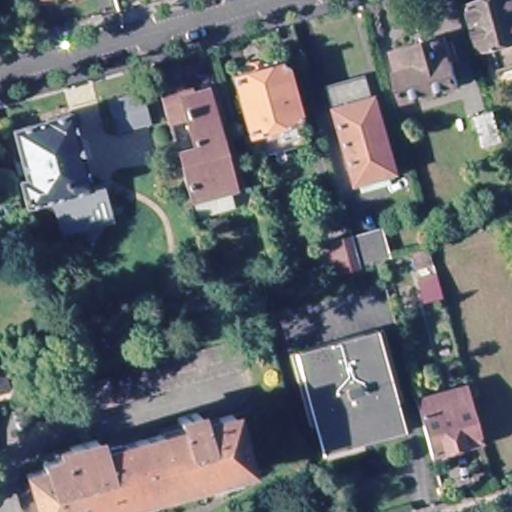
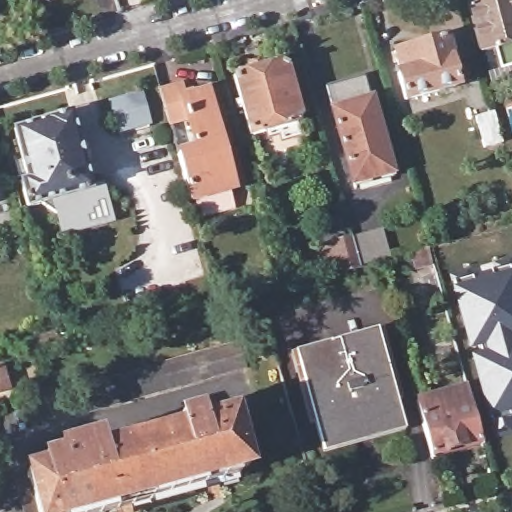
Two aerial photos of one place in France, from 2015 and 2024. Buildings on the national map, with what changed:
unchanged [(512,0),(512,68),(502,71),(496,47),(482,51),(470,7),(497,0),(512,0)]
unchanged [(397,76),(401,75),(395,52),(446,39),(458,86),(403,102),(397,76)]
unchanged [(296,124),(299,136),(268,144),(266,132),(251,136),(234,76),(248,72),(247,66),(262,61),(264,68),(282,63),(287,67),(302,118),(299,123),(296,124)]
unchanged [(363,76),(391,172),(352,183),(325,86),(363,76)]
unchanged [(178,150),(196,146),(187,114),(169,119),(160,86),(182,79),(187,92),(207,87),(234,183),(191,195),(181,159),(178,150)]
new [(142,90),(151,119),(122,127),(114,98),(142,90)]
unchanged [(21,181),(27,179),(13,131),(46,122),(45,119),(70,112),(91,190),(85,191),(87,200),(56,209),(52,200),(27,207),(21,181)]
unchanged [(502,142),(484,147),(475,117),(493,112),(502,142)]
unchanged [(320,254),(342,249),(370,241),(377,268),(368,270),(350,276),(328,282),(320,254)]
unchanged [(427,247),(432,262),(413,267),(409,252),(426,247),(427,247)]
new [(496,436),(492,421),(474,356),(482,354),(479,343),(471,345),(452,280),(471,275),(475,286),(492,281),(490,270),(508,264),(512,277),(512,316),(499,320),(503,335),(511,333),(512,338),(512,347),(507,348),(512,364),(512,404),(508,405),(511,416),(507,417),(511,431),(496,436)]
unchanged [(442,298),(427,303),(417,271),(433,267),(442,298)]
unchanged [(263,318),(252,321),(246,297),(257,294),(263,318)]
new [(512,316),(512,338),(511,333),(503,335),(499,320),(512,316)]
unchanged [(320,454),(317,444),(312,422),(304,424),(286,352),(292,350),(372,328),(381,326),(400,399),(392,401),(398,423),(401,432),(320,454)]
unchanged [(35,355),(30,337),(55,331),(60,349),(35,355)]
unchanged [(246,343),(254,369),(92,414),(85,389),(246,343)]
new [(512,364),(507,348),(512,347),(512,364)]
unchanged [(6,384),(6,388),(0,390),(0,365),(4,364),(9,383),(6,384)]
unchanged [(433,458),(432,453),(417,400),(448,390),(449,391),(461,388),(461,389),(467,388),(482,439),(483,444),(433,458)]
unchanged [(35,491),(31,477),(50,472),(48,466),(51,462),(78,455),(76,447),(103,440),(107,454),(187,432),(184,422),(202,417),(206,428),(237,419),(252,472),(102,512),(29,512),(25,494),(35,491)]

